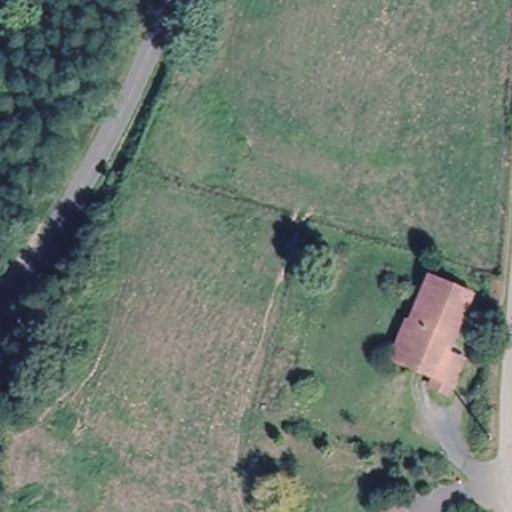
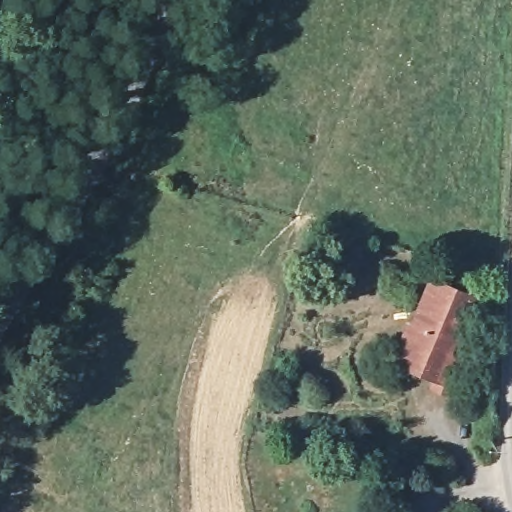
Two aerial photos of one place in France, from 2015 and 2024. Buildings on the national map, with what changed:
unchanged [(407,317),(411,318),(429,275),(469,291),(446,348),(461,354),(447,388),(430,381),(432,375),(392,356),(407,317)]

